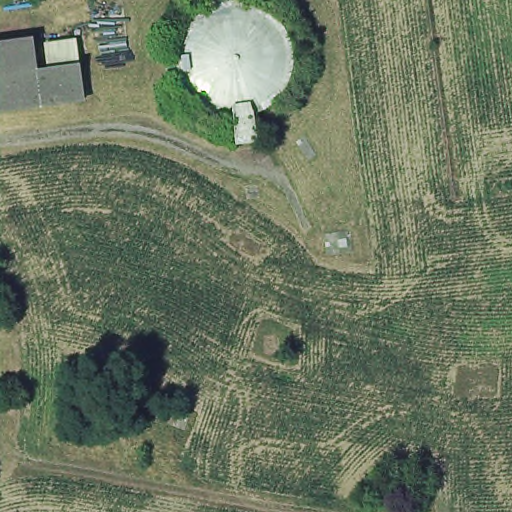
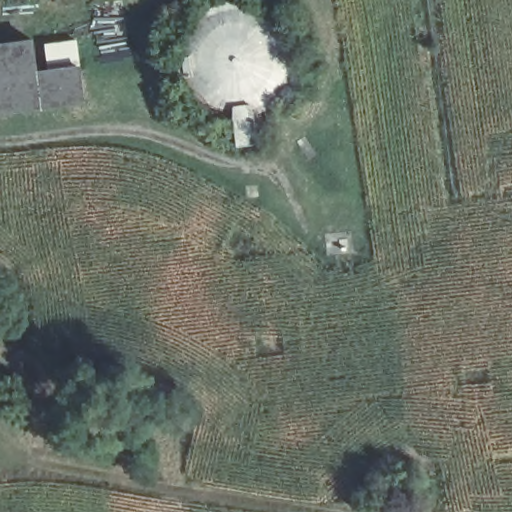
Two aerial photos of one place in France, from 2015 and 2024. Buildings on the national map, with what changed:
unchanged [(74,35),(85,105),(0,114),(0,42),(74,35)]
unchanged [(78,407),(81,411),(82,416),(79,420),(74,422),(69,420),(67,417),(66,412),(69,408),(73,406),(78,407)]

